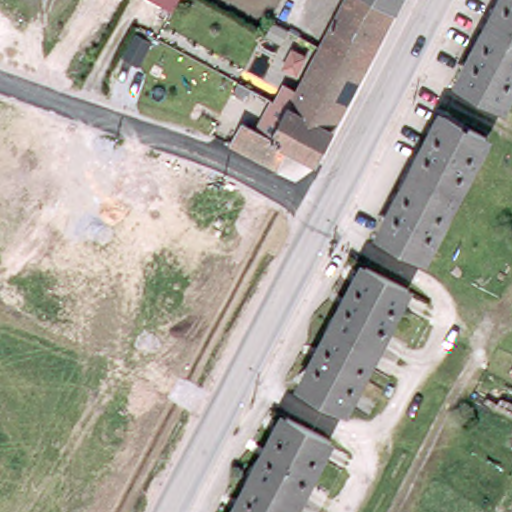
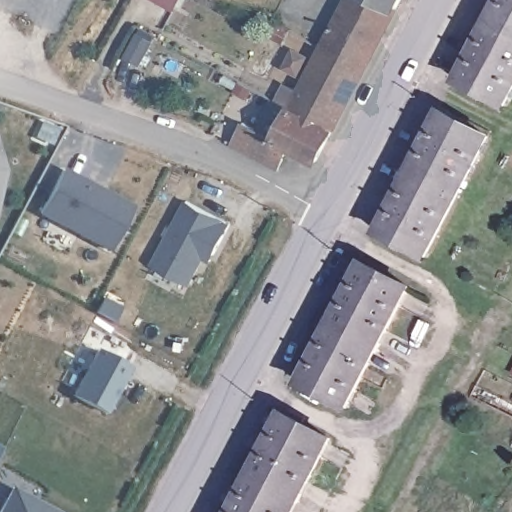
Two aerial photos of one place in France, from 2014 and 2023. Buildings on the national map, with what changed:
new [(172,10),(156,0),(178,0),(172,10)]
unchanged [(291,85),(298,89),(322,42),(344,0),(398,0),(316,155),(289,141),(277,162),(263,155),(255,151),(232,139),(243,117),(274,134),(290,104),(292,100),(285,95),(291,85)]
unchanged [(466,80),(508,0),(512,0),(512,94),(508,102),(466,80)]
unchanged [(482,134),(487,137),(425,256),(382,235),(445,115),(482,134)]
demolished [(512,169),(503,165),(512,147),(512,169)]
new [(6,170),(0,198),(0,150),(6,170)]
new [(107,252),(38,215),(64,167),(134,205),(107,252)]
new [(231,224),(212,260),(205,257),(192,285),(150,264),(184,199),(231,224)]
demolished [(462,247),(493,263),(505,268),(495,288),(477,280),(452,266),(462,247)]
unchanged [(365,268),(407,290),(345,410),(303,387),(365,268)]
new [(131,367),(107,412),(72,396),(95,348),(131,367)]
unchanged [(237,512),(287,416),(328,438),(290,512),(237,512)]
new [(55,512),(0,512),(0,510),(11,489),(55,512)]

